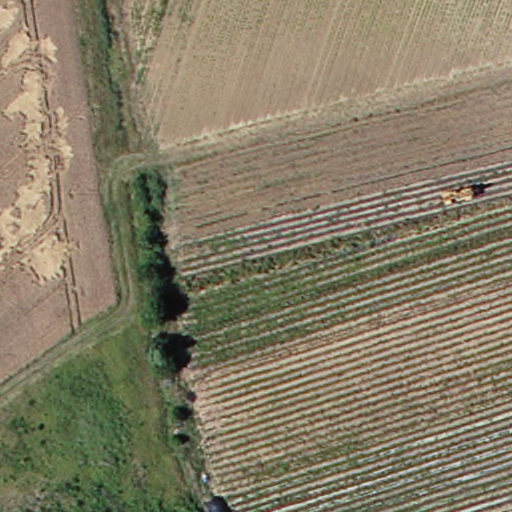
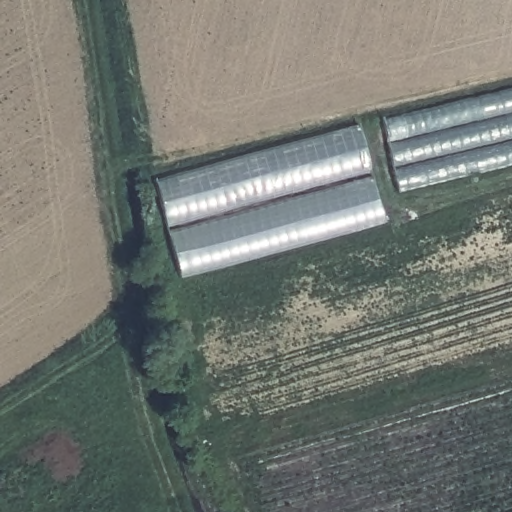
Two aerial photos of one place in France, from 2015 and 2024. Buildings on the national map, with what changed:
new [(380,117),(512,86),(512,164),(397,191),(380,117)]
new [(154,178),(358,123),(382,221),(178,277),(154,178)]

